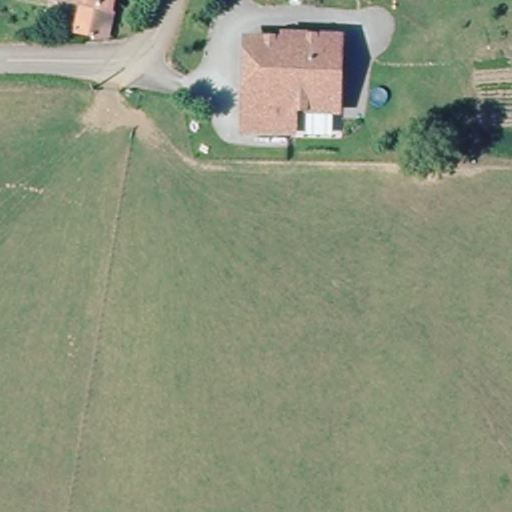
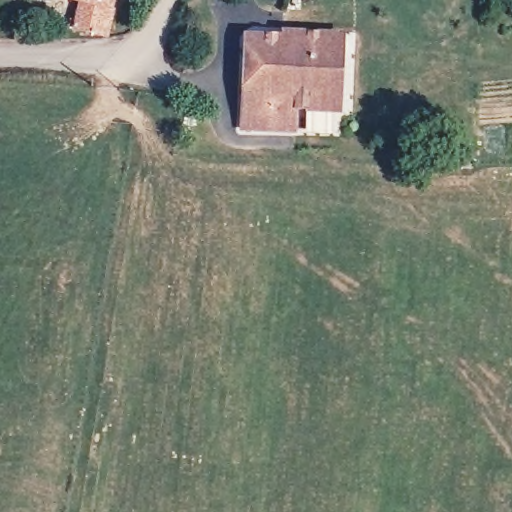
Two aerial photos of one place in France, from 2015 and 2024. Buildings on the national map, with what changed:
unchanged [(82,5),(59,0),(119,0),(111,44),(76,33),(82,5)]
unchanged [(297,111),(297,131),(248,131),(248,47),(289,46),(289,41),(342,41),(342,111),(297,111)]

